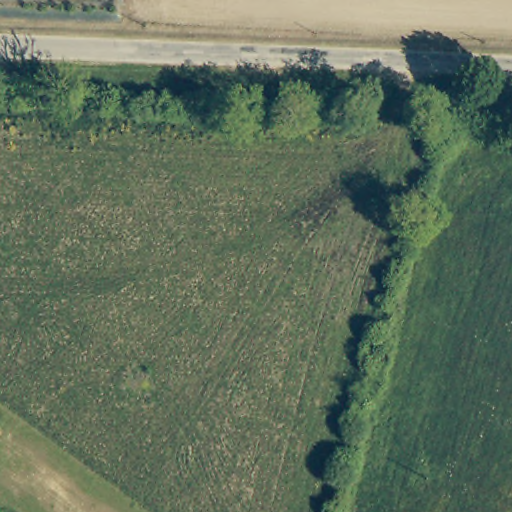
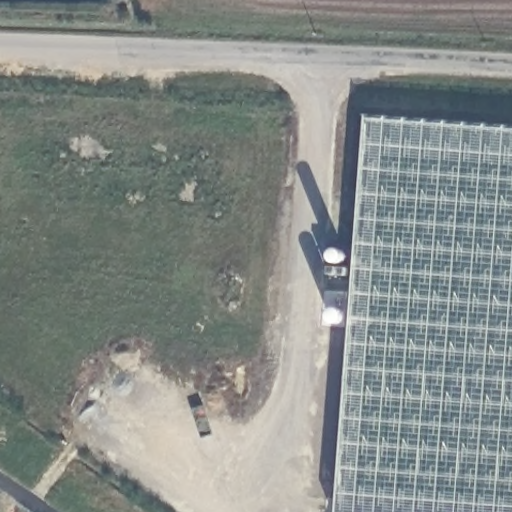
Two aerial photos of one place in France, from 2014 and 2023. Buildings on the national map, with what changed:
new [(367,115),(512,126),(512,512),(335,512),(367,115)]

